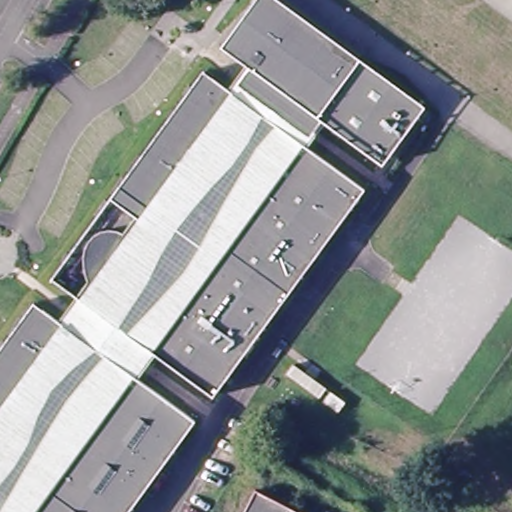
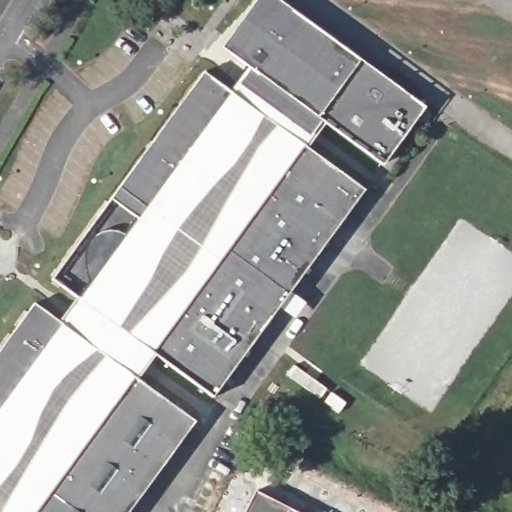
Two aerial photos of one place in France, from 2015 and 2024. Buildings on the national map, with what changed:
unchanged [(29,308),(53,325),(70,301),(46,283),(198,76),(222,93),(239,69),(215,52),(253,0),(268,0),(295,20),(406,102),(411,106),(420,112),(378,171),(321,129),(303,153),(360,195),(208,402),(150,359),(132,384),(190,426),(128,512),(0,512),(0,348),(29,308)]
unchanged [(282,503),(278,512),(248,512),(258,491),(282,503)]
unchanged [(300,512),(278,512),(282,503),(300,512)]

